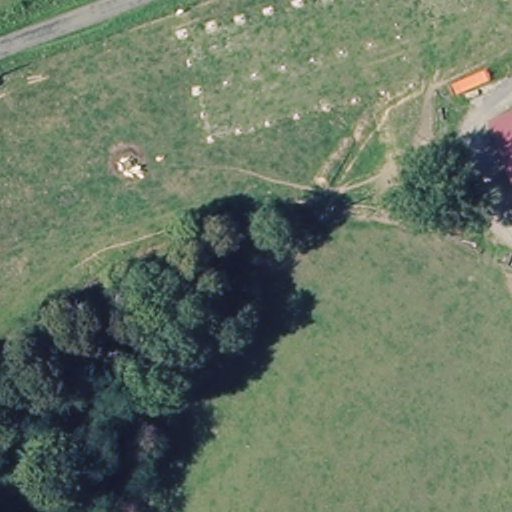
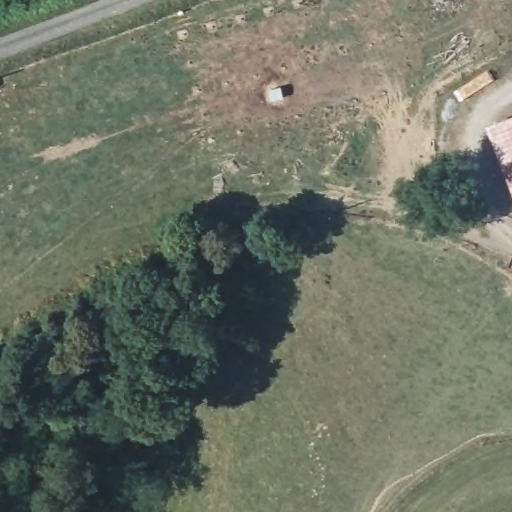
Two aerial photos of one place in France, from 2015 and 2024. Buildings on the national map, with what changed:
unchanged [(512,191),(485,131),(512,119),(512,191)]

